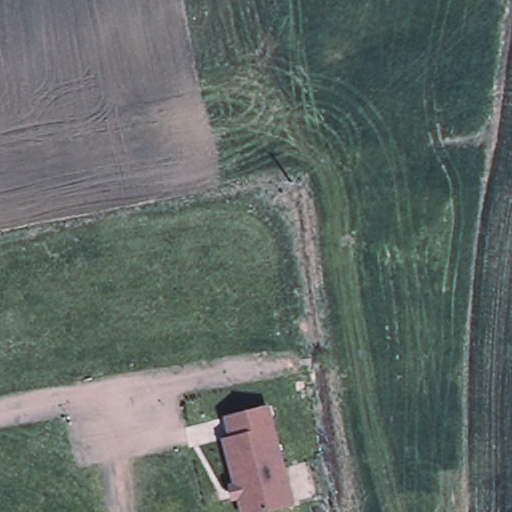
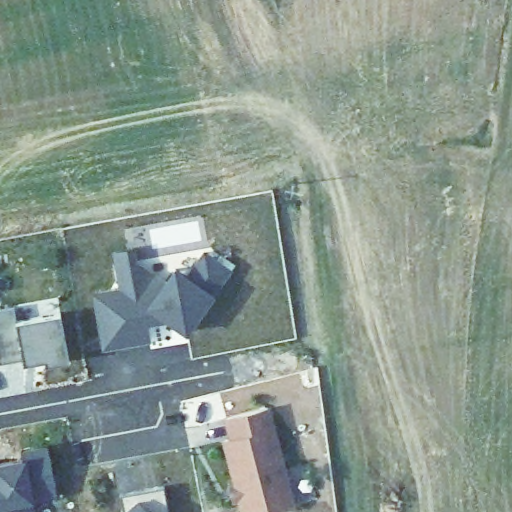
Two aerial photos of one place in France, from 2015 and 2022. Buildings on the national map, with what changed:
new [(234,268),(216,293),(188,334),(167,319),(148,325),(151,342),(101,349),(92,290),(118,287),(113,253),(136,248),(138,262),(156,273),(166,276),(174,264),(186,273),(203,249),(234,268)]
new [(17,319),(60,314),(68,358),(46,362),(45,357),(24,362),(23,354),(0,361),(0,309),(14,307),(17,319)]
unchanged [(232,488),(238,486),(226,439),(233,438),(226,417),(269,406),(294,504),(264,512),(245,512),(241,496),(234,498),(232,488)]
new [(57,496),(33,501),(34,508),(8,512),(0,512),(0,468),(24,464),(24,452),(48,448),(57,496)]
new [(163,487),(169,512),(122,512),(124,509),(120,494),(163,487)]

